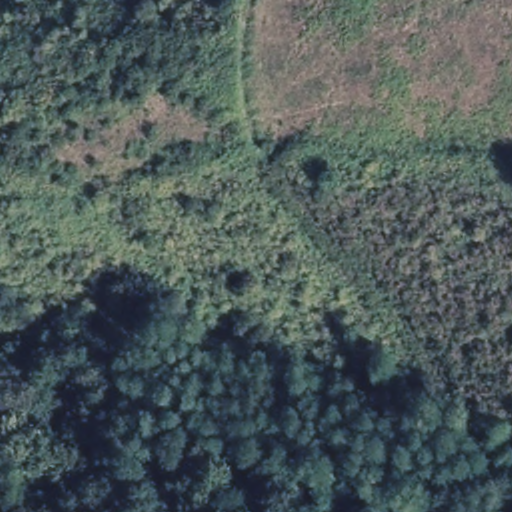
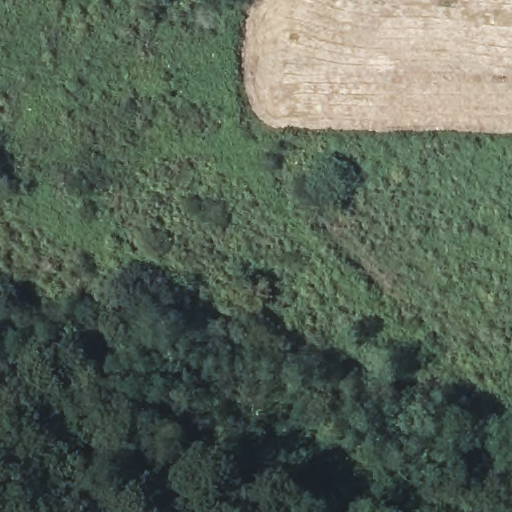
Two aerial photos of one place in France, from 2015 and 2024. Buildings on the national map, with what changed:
[]

